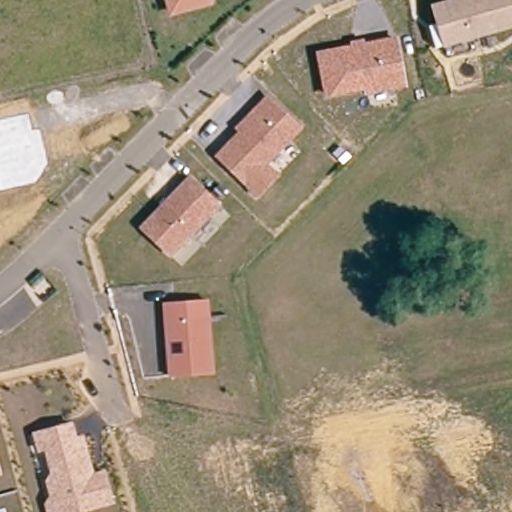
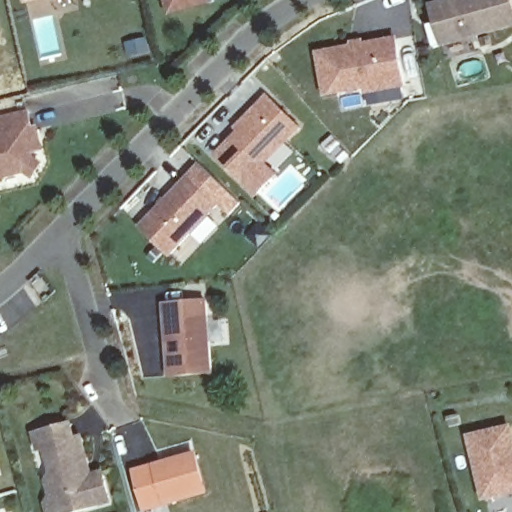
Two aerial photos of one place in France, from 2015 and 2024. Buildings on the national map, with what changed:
new [(25,4),(24,0),(44,0),(25,4)]
unchanged [(174,14),(170,0),(212,0),(213,4),(174,14)]
unchanged [(470,0),(512,0),(512,30),(445,50),(433,11),(470,0)]
unchanged [(396,37),(407,87),(365,98),(363,91),(326,100),(316,52),(396,37)]
unchanged [(300,130),(266,166),(278,178),(260,197),(220,159),(243,134),(240,130),(257,112),(268,100),(300,130)]
new [(34,123),(35,127),(40,125),(47,154),(37,157),(48,164),(36,181),(26,175),(2,180),(5,189),(0,190),(0,117),(31,110),(34,123)]
unchanged [(169,255),(139,226),(189,174),(219,202),(169,255)]
unchanged [(211,372),(168,375),(164,318),(163,303),(174,302),(206,300),(211,372)]
unchanged [(49,498),(44,481),(50,473),(44,452),(38,454),(33,433),(73,422),(77,435),(85,434),(95,473),(104,471),(114,505),(87,512),(46,512),(44,504),(49,498)]
new [(512,450),(512,489),(484,496),(468,435),(506,425),(512,450)]
new [(208,495),(161,509),(145,512),(140,512),(129,469),(195,450),(208,495)]
unchanged [(3,512),(0,512),(3,511),(3,512)]

